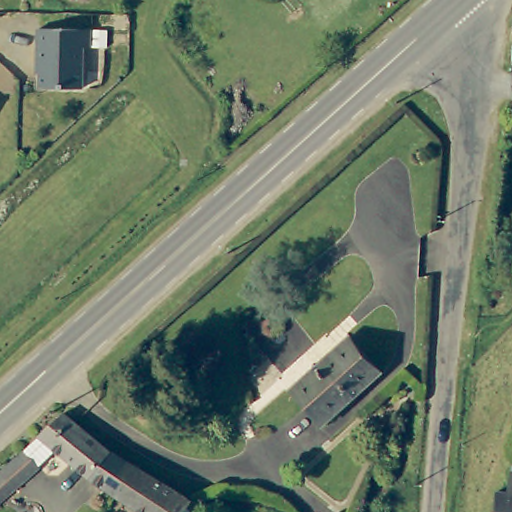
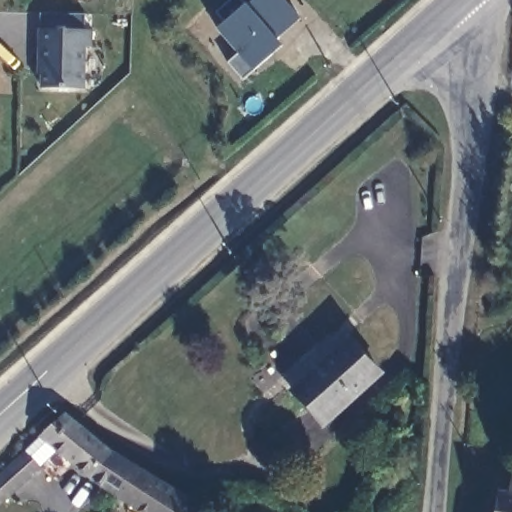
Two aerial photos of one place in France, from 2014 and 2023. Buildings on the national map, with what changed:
new [(282,44),(254,70),(242,78),(228,60),(238,50),(217,27),(225,20),(215,10),(226,0),(244,0),(249,4),(252,0),(283,0),(299,20),(277,37),(282,44)]
unchanged [(89,24),(89,40),(81,40),(80,60),(82,80),(83,83),(40,84),(40,60),(36,56),(37,23),(89,24)]
unchanged [(319,421),(290,388),(347,336),(377,367),(319,421)]
unchanged [(37,433),(62,411),(111,453),(131,465),(114,495),(96,483),(37,433)]
unchanged [(33,458),(18,471),(25,478),(0,499),(0,468),(24,449),(33,458)]
unchanged [(506,502),(509,460),(512,460),(512,503),(506,502)]
unchanged [(131,465),(190,497),(181,512),(143,512),(114,495),(131,465)]
unchanged [(506,502),(512,503),(512,512),(489,512),(491,500),(506,502)]

